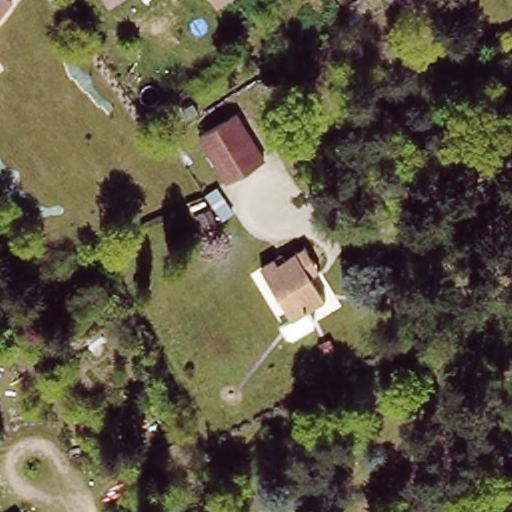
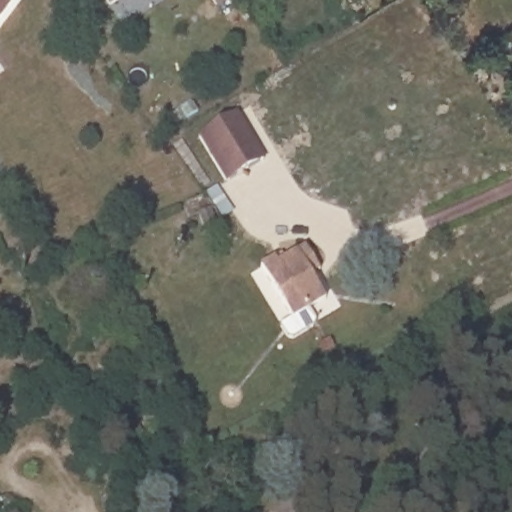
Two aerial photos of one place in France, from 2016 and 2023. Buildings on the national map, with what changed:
unchanged [(0,17),(0,0),(13,0),(0,17)]
unchanged [(110,9),(104,0),(123,0),(110,9)]
unchanged [(216,7),(211,0),(226,0),(216,7)]
unchanged [(357,0),(363,9),(355,15),(348,5),(357,0)]
unchanged [(241,110),(271,153),(235,178),(205,135),(241,110)]
unchanged [(214,202),(207,190),(219,182),(237,207),(222,218),(222,223),(206,228),(199,209),(214,202)]
unchanged [(320,269),(313,274),(327,304),(295,322),(260,268),(278,256),(282,262),(307,247),(320,269)]
unchanged [(90,262),(98,280),(76,290),(67,273),(90,262)]
unchanged [(316,487),(324,504),(310,511),(302,494),(316,487)]

